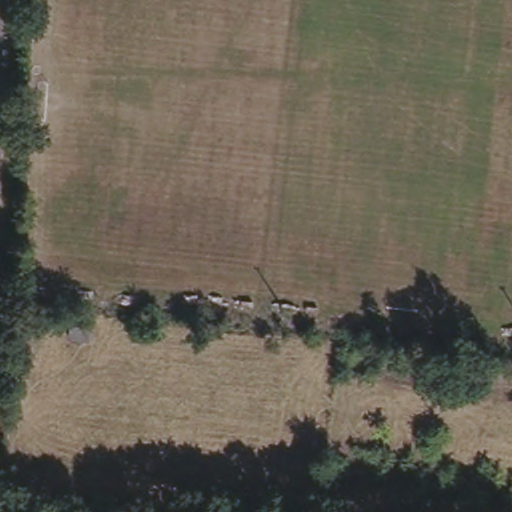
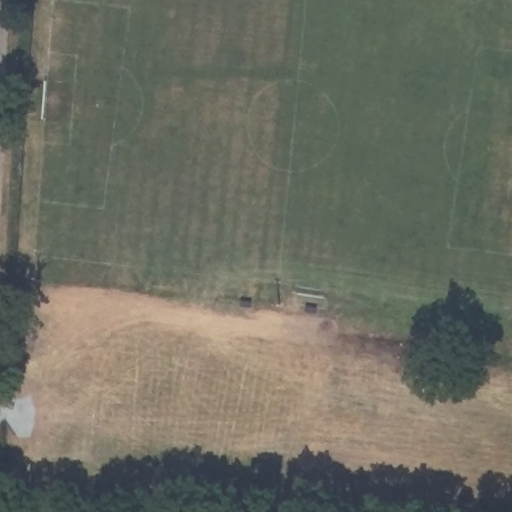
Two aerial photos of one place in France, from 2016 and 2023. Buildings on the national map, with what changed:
unchanged [(94,322),(90,337),(69,335),(73,318),(94,322)]

